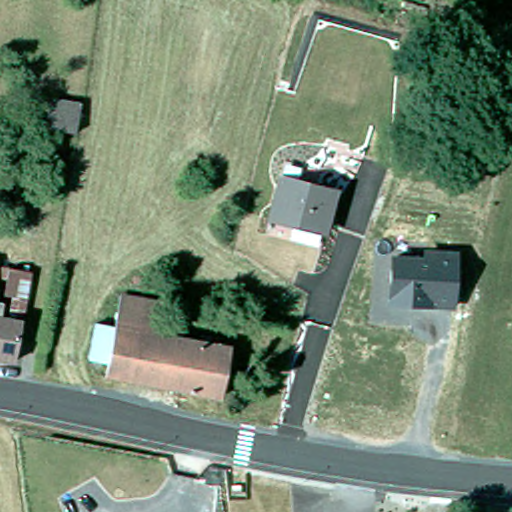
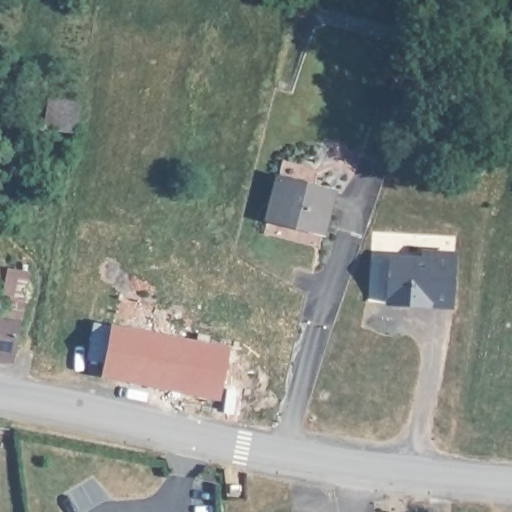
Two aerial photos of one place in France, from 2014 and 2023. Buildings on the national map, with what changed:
unchanged [(336,192),(334,197),(326,229),(291,220),(291,224),(271,219),(281,175),(335,190),(336,192)]
unchanged [(424,257),(424,248),(458,251),(454,308),(388,306),(389,256),(424,257)]
unchanged [(30,272),(14,360),(0,358),(0,266),(30,272)]
unchanged [(223,387),(108,368),(115,325),(231,344),(223,387)]

